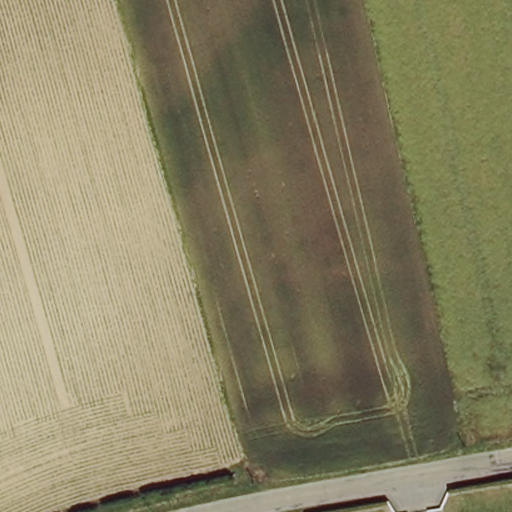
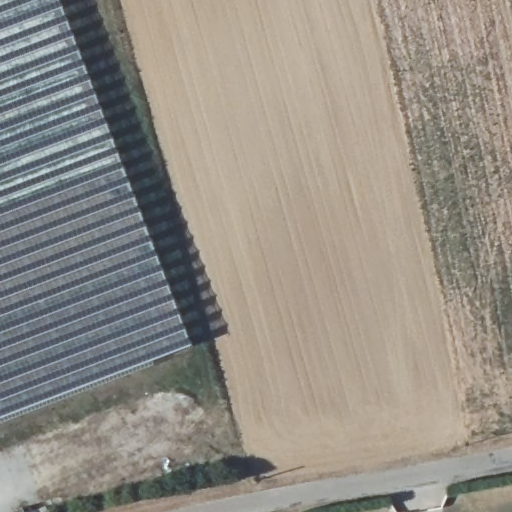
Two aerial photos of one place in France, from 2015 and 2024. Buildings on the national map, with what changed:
new [(0,419),(0,0),(57,0),(190,347),(0,419)]

